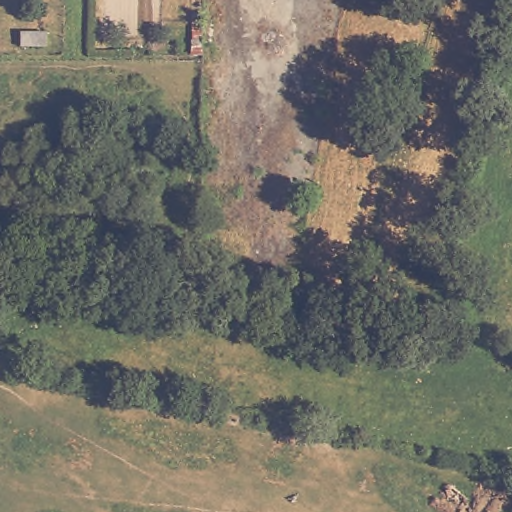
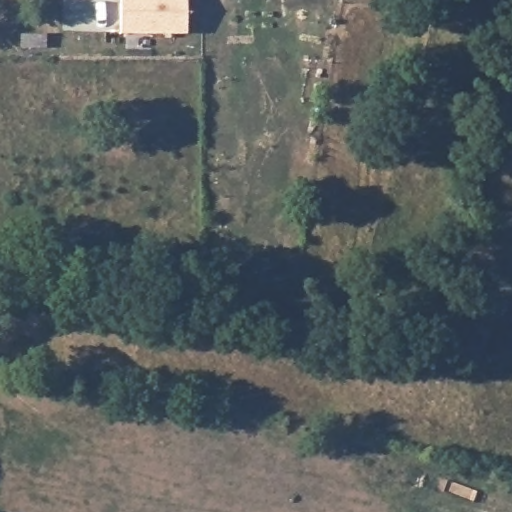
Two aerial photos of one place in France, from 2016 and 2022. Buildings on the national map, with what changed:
new [(120,33),(120,0),(190,0),(190,32),(120,33)]
unchanged [(386,272),(414,277),(411,291),(383,286),(386,272)]

